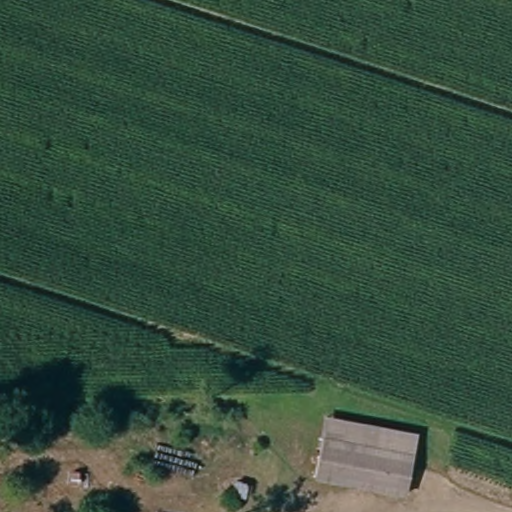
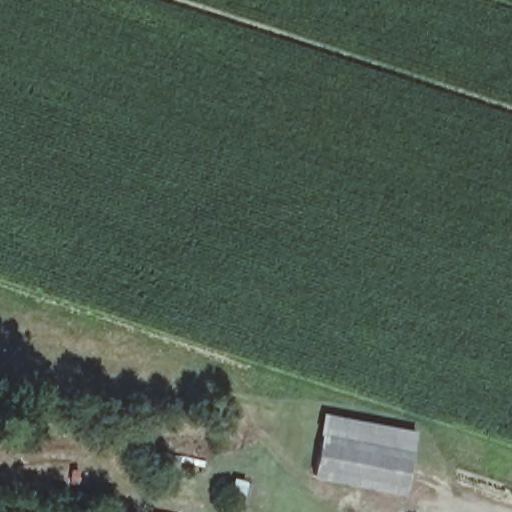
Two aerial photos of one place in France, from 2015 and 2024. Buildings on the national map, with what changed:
unchanged [(326,428),(328,420),(418,437),(415,448),(413,460),(380,453),(323,442),(326,428)]
unchanged [(373,487),(317,475),(323,442),(380,453),(373,487)]
unchanged [(405,494),(373,487),(380,453),(413,460),(405,494)]

